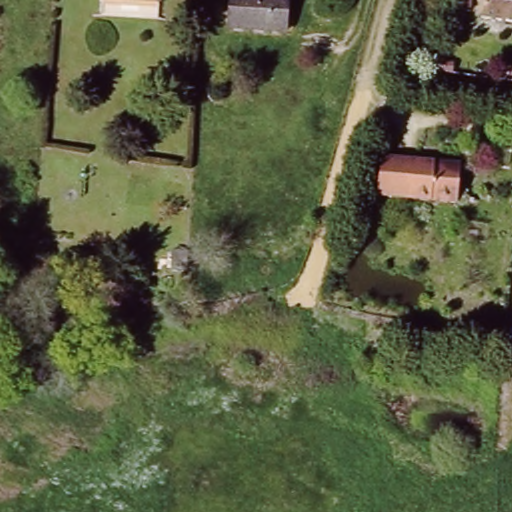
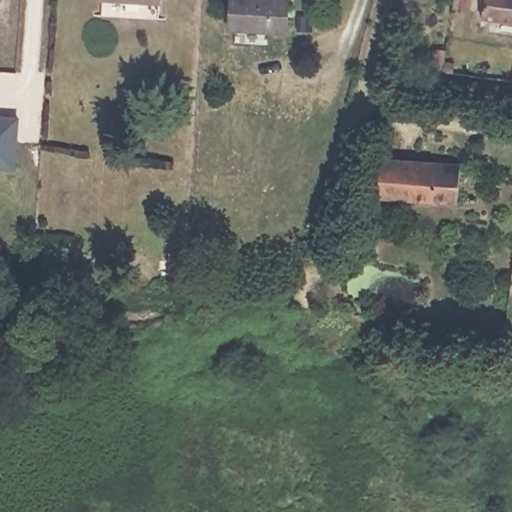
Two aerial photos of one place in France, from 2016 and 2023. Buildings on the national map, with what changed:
unchanged [(154,2),(114,0),(154,0),(154,2)]
unchanged [(286,0),(285,32),(220,28),(222,0),(274,0),(286,0)]
unchanged [(472,0),(512,0),(512,22),(481,19),(482,5),(472,4),(472,0)]
new [(0,168),(0,114),(21,115),(18,169),(0,168)]
unchanged [(376,196),(380,158),(457,165),(450,203),(376,196)]

